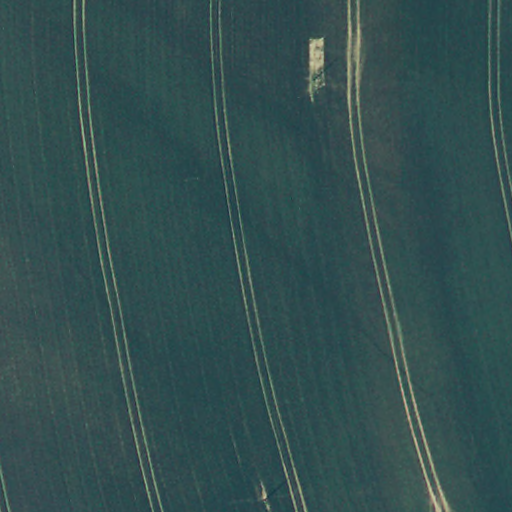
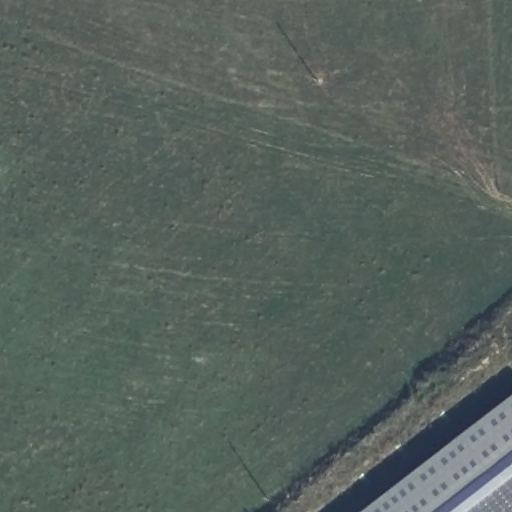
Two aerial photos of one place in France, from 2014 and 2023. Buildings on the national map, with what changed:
new [(512,396),(512,512),(363,512),(512,396)]

